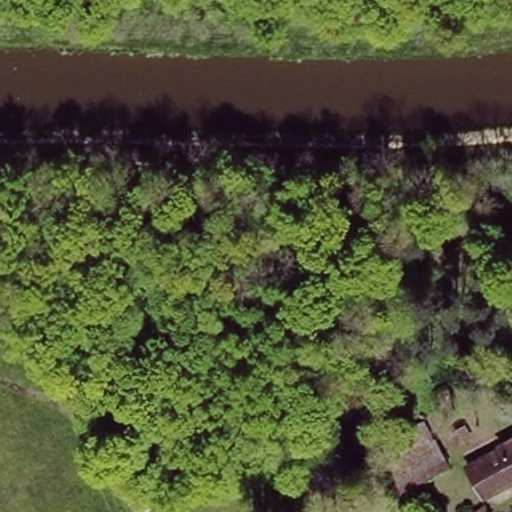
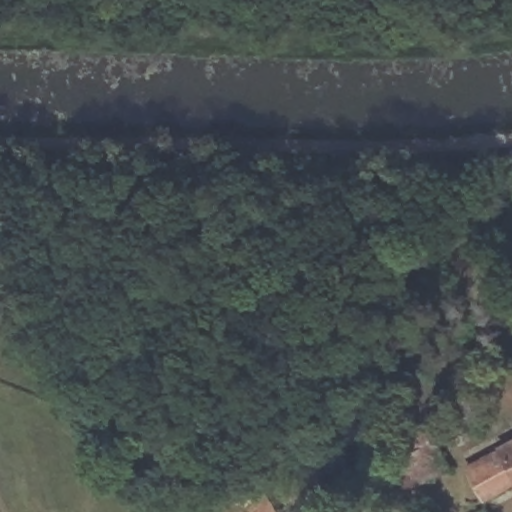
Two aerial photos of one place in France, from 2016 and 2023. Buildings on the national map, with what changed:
unchanged [(400,501),(387,471),(399,466),(390,445),(427,425),(437,445),(450,474),(400,501)]
unchanged [(512,435),(512,487),(508,489),(505,485),(478,500),(461,469),(488,454),(485,449),(512,435)]

